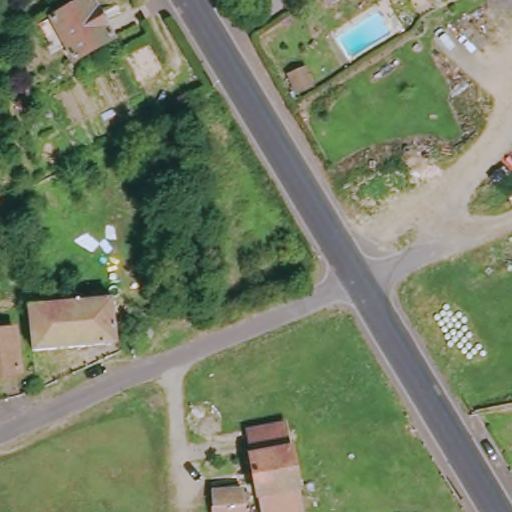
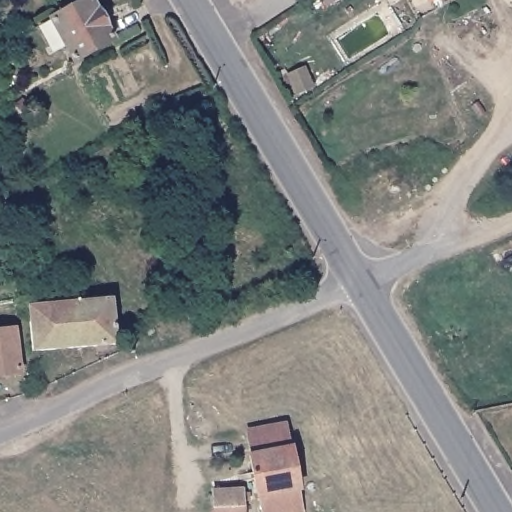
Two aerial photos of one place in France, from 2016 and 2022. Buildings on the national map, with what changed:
unchanged [(67,60),(47,22),(87,1),(105,38),(67,60)]
unchanged [(24,309),(107,300),(108,342),(28,350),(24,309)]
unchanged [(0,334),(12,333),(15,371),(0,372),(0,334)]
unchanged [(292,452),(300,507),(301,512),(263,512),(262,509),(255,459),(250,436),(288,429),(292,452)]
unchanged [(246,502),(246,512),(219,512),(218,502),(246,502)]

